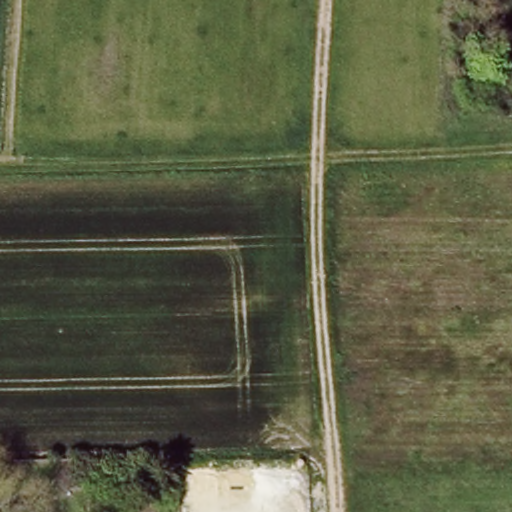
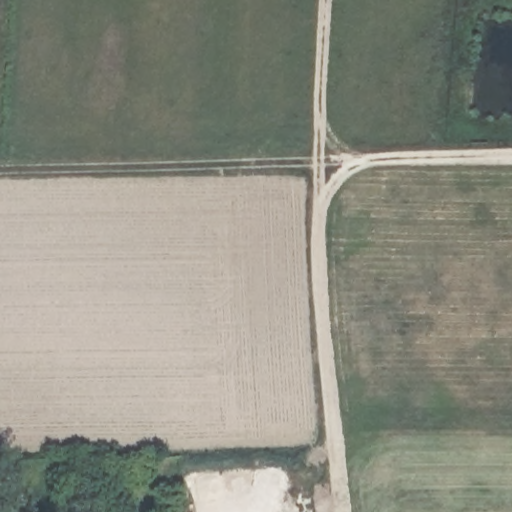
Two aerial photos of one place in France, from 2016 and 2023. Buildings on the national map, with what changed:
[]

